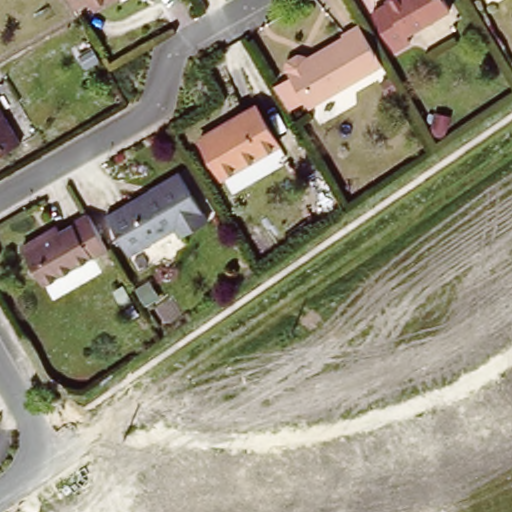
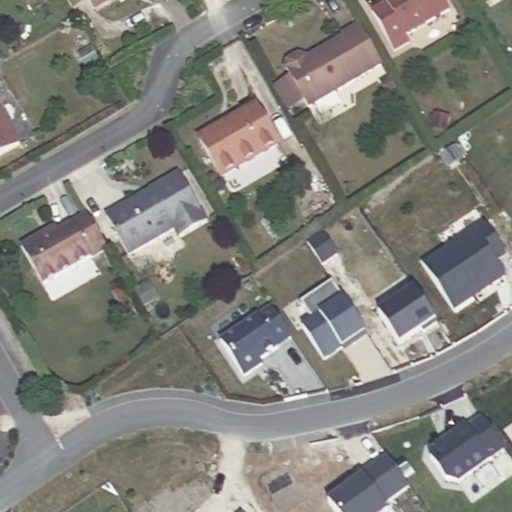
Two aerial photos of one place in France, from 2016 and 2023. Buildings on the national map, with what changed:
unchanged [(70,0),(91,0),(75,8),(70,0)]
unchanged [(96,8),(92,0),(111,0),(96,8)]
unchanged [(408,37),(413,44),(398,53),(375,14),(389,5),(387,2),(392,0),(445,0),(451,11),(408,37)]
unchanged [(285,83),(296,77),(291,67),(293,57),(302,52),(312,58),(348,38),(346,34),(365,24),(388,66),(315,107),(310,100),(298,107),(285,83)]
unchanged [(95,75),(86,61),(101,54),(109,68),(95,75)]
unchanged [(0,156),(0,104),(22,143),(0,156)]
unchanged [(280,143),(223,175),(201,136),(258,104),(280,143)]
unchanged [(458,120),(444,128),(436,115),(450,107),(458,120)]
unchanged [(132,257),(108,216),(130,203),(132,207),(155,194),(152,190),(183,173),(212,222),(183,238),(179,231),(132,257)]
unchanged [(112,254),(46,290),(26,251),(49,239),(62,231),(65,236),(93,220),(112,254)]
new [(483,223),(506,257),(496,265),(506,278),(455,312),(423,265),(483,223)]
new [(332,281),(342,297),(366,332),(368,336),(345,352),(342,349),(322,362),(301,326),(311,320),(300,304),(332,281)]
unchanged [(146,309),(136,292),(149,284),(160,302),(146,309)]
new [(415,289),(436,320),(400,344),(378,313),(415,289)]
new [(257,315),(260,318),(271,307),(291,338),(280,348),(261,361),(263,364),(245,378),(241,372),(220,341),(257,315)]
new [(433,445),(466,422),(469,427),(480,417),(504,449),(489,460),(458,483),(445,480),(430,457),(433,445)]

